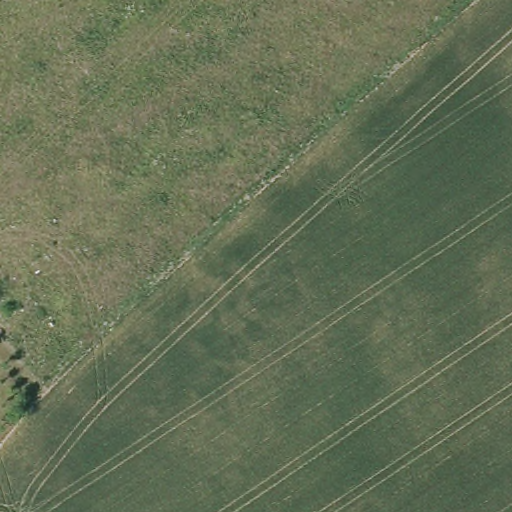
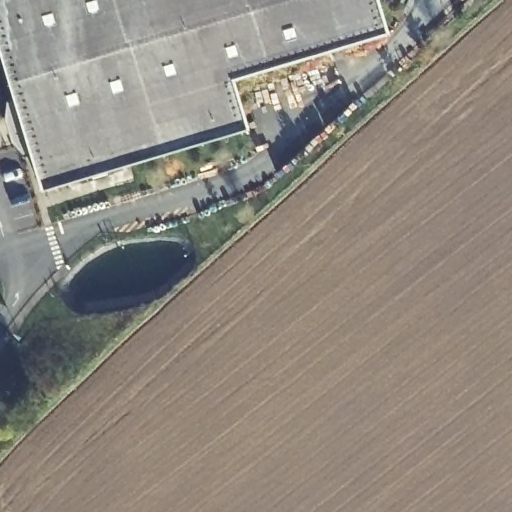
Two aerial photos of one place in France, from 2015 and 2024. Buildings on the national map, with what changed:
new [(392,25),(242,74),(255,124),(38,182),(0,42),(0,0),(385,0),(392,25)]

